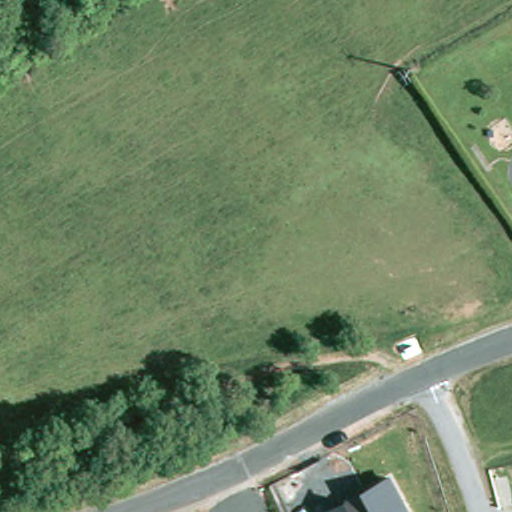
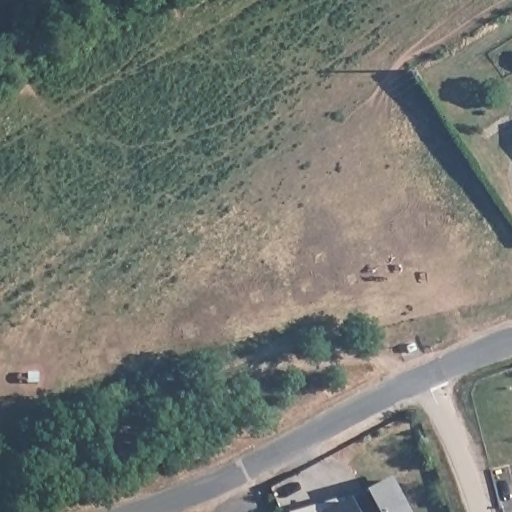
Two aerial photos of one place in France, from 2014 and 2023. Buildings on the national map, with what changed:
unchanged [(390,476),(410,512),(324,512),(390,476)]

